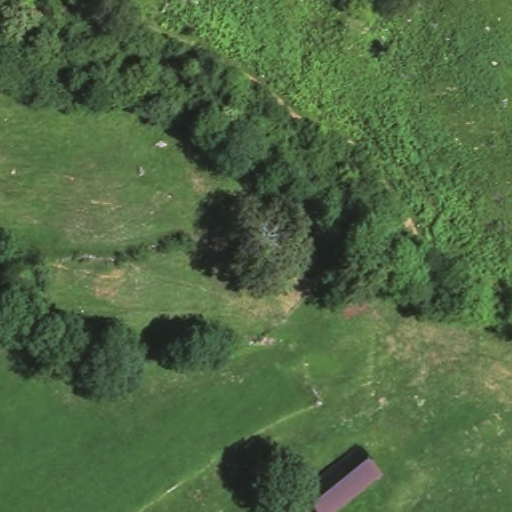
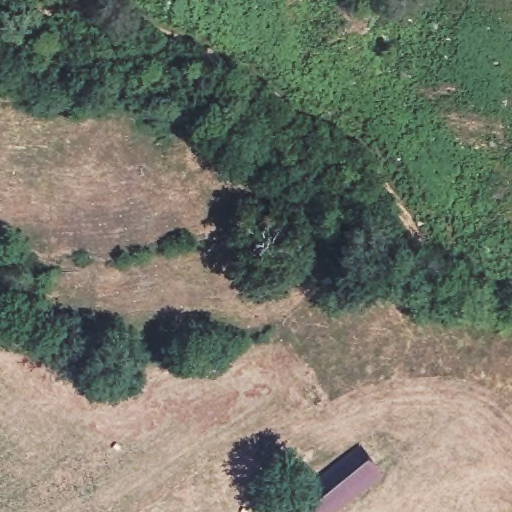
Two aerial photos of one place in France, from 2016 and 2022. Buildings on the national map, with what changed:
unchanged [(358,445),(386,477),(344,512),(314,512),(300,495),(332,468),(358,445)]

